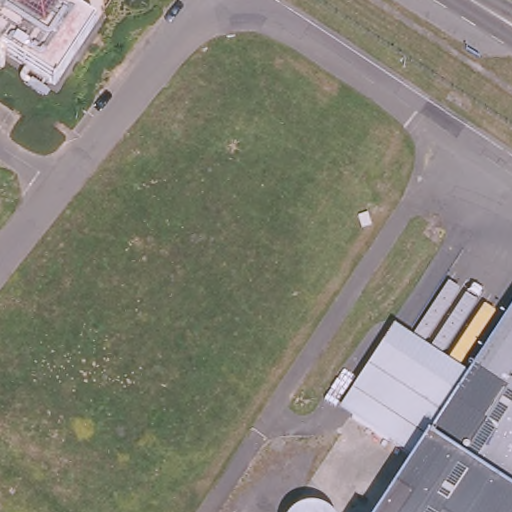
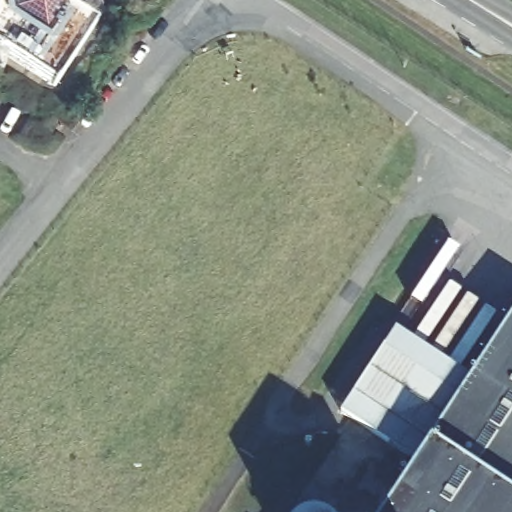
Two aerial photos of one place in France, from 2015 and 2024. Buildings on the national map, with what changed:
unchanged [(60,7),(92,28),(49,90),(0,56),(0,0),(60,0),(60,7)]
unchanged [(449,396),(509,302),(512,304),(512,512),(376,512),(420,443),(449,396)]
unchanged [(449,396),(420,443),(345,395),(376,347),(449,396)]
unchanged [(309,509),(318,512),(294,512),(297,510),(309,509)]

